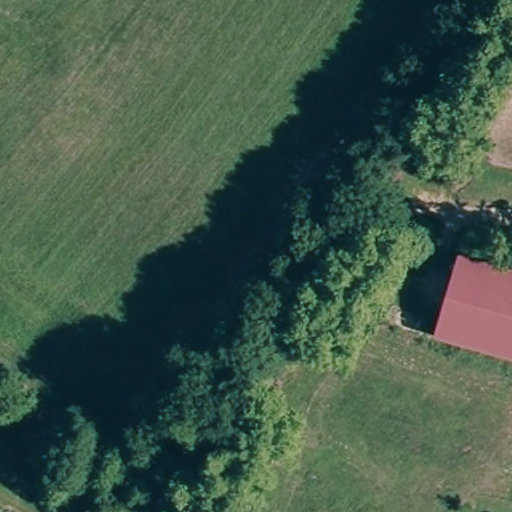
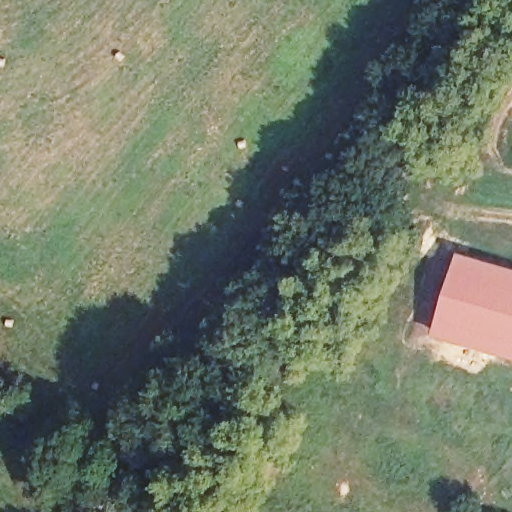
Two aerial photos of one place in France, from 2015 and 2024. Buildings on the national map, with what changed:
unchanged [(512,272),(512,356),(439,334),(460,260),(461,257),(512,272)]

